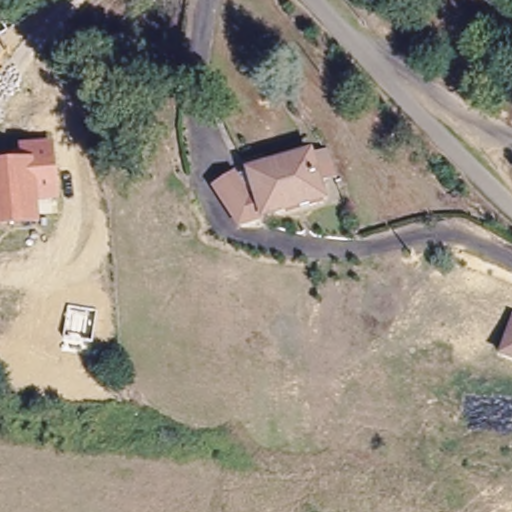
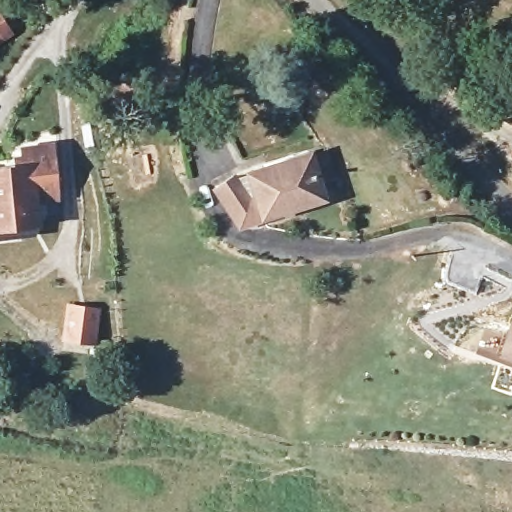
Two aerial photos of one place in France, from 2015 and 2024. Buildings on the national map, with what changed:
new [(0,44),(0,14),(15,35),(0,44)]
unchanged [(0,163),(24,161),(22,144),(52,141),(58,195),(36,197),(38,212),(39,221),(0,225),(0,163)]
unchanged [(228,173),(248,194),(252,191),(244,170),(311,146),(318,163),(328,159),(334,175),(324,180),(327,191),(257,213),(253,224),(242,228),(209,191),(228,173)]
new [(61,340),(66,303),(101,309),(96,345),(61,340)]
unchanged [(500,355),(512,321),(512,359),(500,355)]

